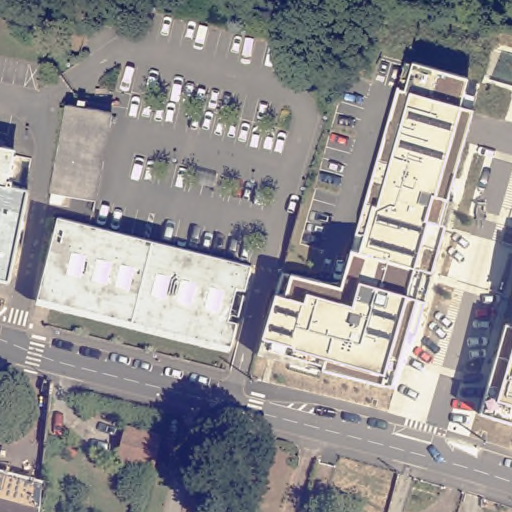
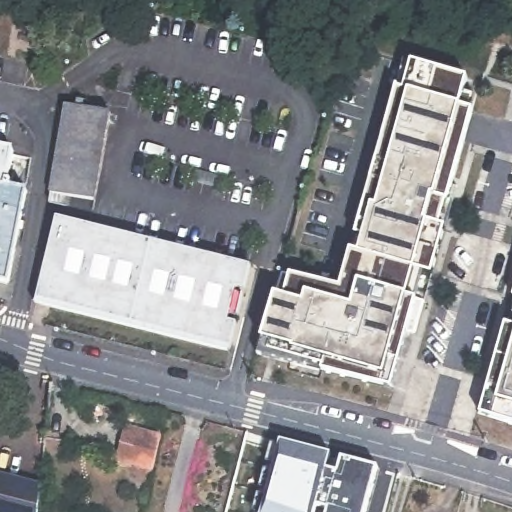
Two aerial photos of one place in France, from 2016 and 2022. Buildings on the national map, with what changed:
unchanged [(434,0),(432,16),(382,6),(383,0),(434,0)]
unchanged [(459,106),(474,111),(440,224),(446,227),(432,273),(424,270),(416,298),(391,389),(257,353),(261,341),(276,295),(283,275),(292,276),(341,288),(352,251),(359,253),(363,236),(355,234),(396,87),(403,61),(413,64),(468,79),(459,106)]
unchanged [(67,108),(112,116),(96,204),(63,197),(61,208),(50,206),(52,191),(67,108)]
unchanged [(2,182),(8,183),(7,188),(23,192),(5,283),(0,282),(0,150),(9,152),(2,182)]
unchanged [(46,265),(52,244),(52,243),(57,219),(250,268),(244,292),(231,348),(52,303),(37,299),(46,265)]
unchanged [(480,412),(505,325),(512,326),(512,423),(480,412)]
unchanged [(154,471),(120,463),(128,429),(162,437),(154,471)]
new [(281,441),(332,454),(328,468),(338,472),(342,459),(378,468),(366,512),(328,512),(328,511),(317,509),(317,512),(261,512),(281,441)]
unchanged [(0,480),(47,493),(44,512),(0,512),(0,480)]

